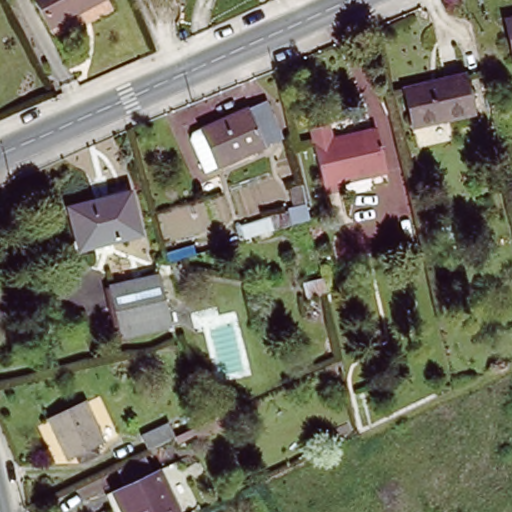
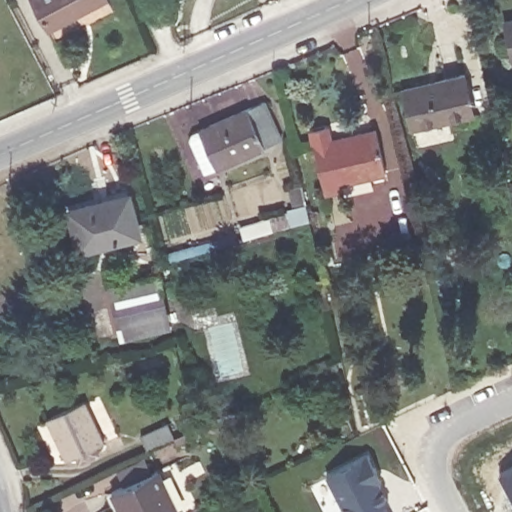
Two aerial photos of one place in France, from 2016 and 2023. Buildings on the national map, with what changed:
unchanged [(110,7),(100,13),(53,36),(35,0),(107,0),(110,7)]
unchanged [(504,21),(512,20),(512,56),(504,21)]
unchanged [(411,124),(402,86),(462,72),(471,110),(411,124)]
unchanged [(199,135),(210,130),(275,100),(292,139),(227,167),(215,172),(199,135)]
unchanged [(322,191),(308,134),(325,130),(329,145),(369,137),(374,136),(384,179),(322,191)]
unchanged [(280,182),(275,164),(289,160),(295,177),(280,182)]
unchanged [(140,239),(80,255),(70,214),(130,198),(140,239)]
unchanged [(286,210),(305,205),(309,219),(290,224),(286,210)]
unchanged [(325,291),(307,297),(302,283),(322,277),(325,291)]
unchanged [(170,330),(121,342),(108,290),(157,278),(170,330)]
unchanged [(77,460),(74,453),(64,457),(46,417),(85,400),(104,440),(93,445),(97,452),(77,460)]
unchanged [(168,424),(175,437),(220,416),(225,428),(177,445),(174,440),(147,453),(141,437),(168,424)]
new [(377,470),(374,471),(389,500),(384,502),(390,512),(349,512),(327,473),(368,451),(377,470)]
unchanged [(122,490),(112,467),(130,458),(140,481),(157,473),(176,512),(116,512),(109,496),(122,490)]

